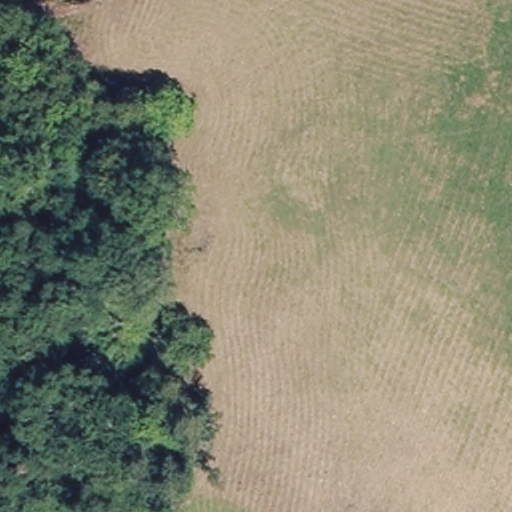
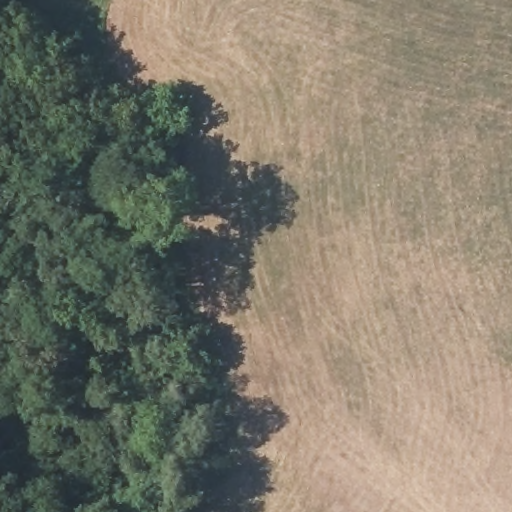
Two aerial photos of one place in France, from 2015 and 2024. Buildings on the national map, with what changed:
[]

